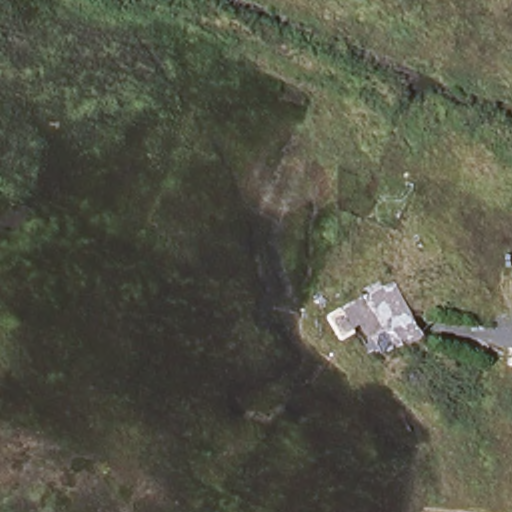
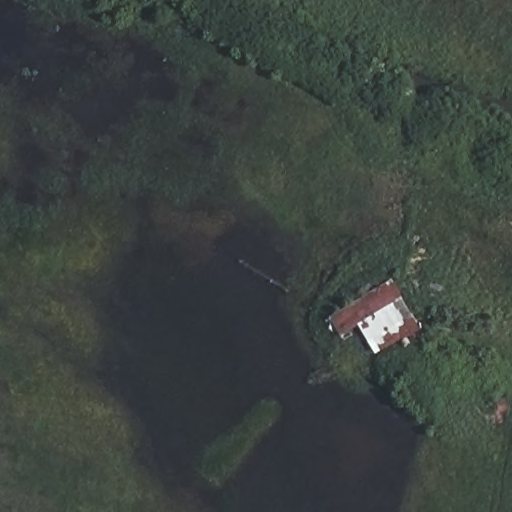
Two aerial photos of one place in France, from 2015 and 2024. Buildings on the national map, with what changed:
unchanged [(125,1),(121,0),(125,0),(125,1)]
unchanged [(337,305),(343,313),(365,298),(384,330),(364,340),(358,333),(340,342),(325,312),(337,305)]

